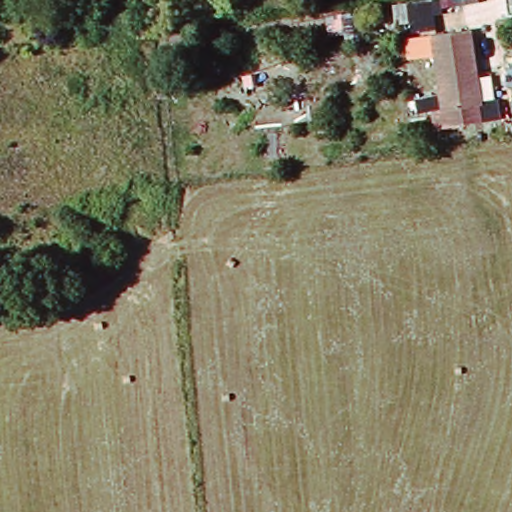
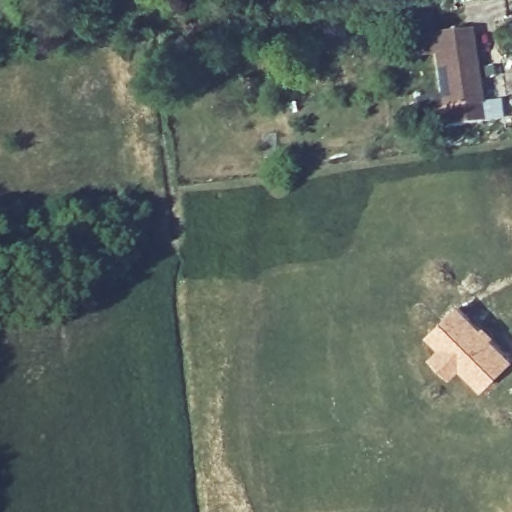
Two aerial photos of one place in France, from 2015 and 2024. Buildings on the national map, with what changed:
unchanged [(488,123),(442,129),(439,110),(444,109),(434,41),(474,35),(488,123)]
new [(456,304),(487,331),(512,357),(512,361),(482,391),(460,371),(451,379),(429,357),(438,346),(427,334),(456,304)]

